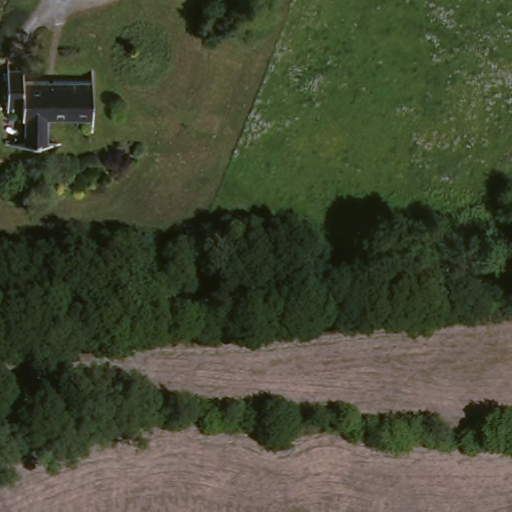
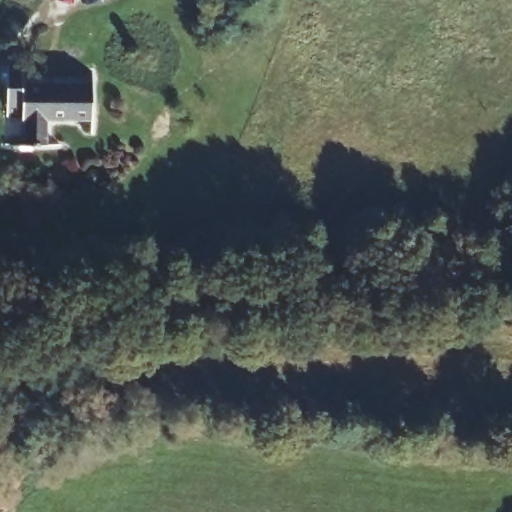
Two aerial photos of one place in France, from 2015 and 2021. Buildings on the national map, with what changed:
unchanged [(87,90),(86,124),(43,121),(41,146),(14,145),(16,111),(1,110),(3,84),(87,90)]

